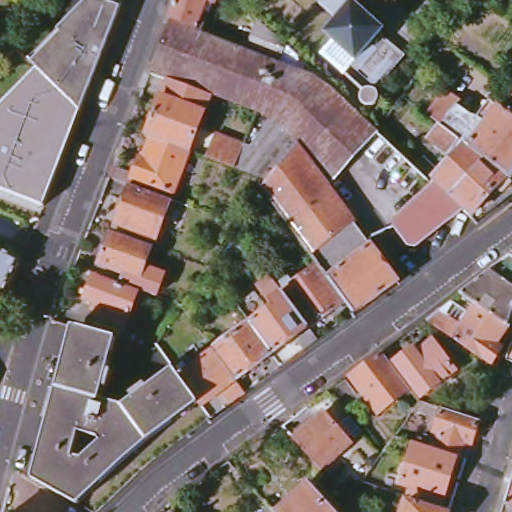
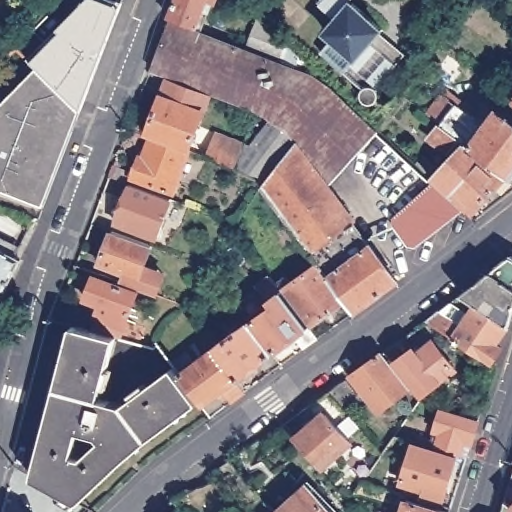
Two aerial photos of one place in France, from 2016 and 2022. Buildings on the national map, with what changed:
unchanged [(90,0),(111,0),(125,5),(87,109),(45,70),(44,69),(35,61),(33,59),(90,0)]
unchanged [(175,0),(207,0),(197,26),(169,16),(175,0)]
unchanged [(366,103),(364,103),(362,101),(361,99),(360,98),(359,96),(359,94),(359,91),(361,89),(321,54),(333,40),(326,34),(338,20),(318,1),(319,0),(351,0),(386,29),(376,41),(396,60),(375,85),(376,86),(378,88),(379,89),(379,91),(380,92),(379,95),(379,98),(378,99),(377,101),(375,102),(374,103),(372,103),(369,104),(368,104),(366,103)]
unchanged [(218,134),(246,144),(253,146),(271,121),(264,111),(150,69),(169,19),(319,74),(379,128),(435,179),(467,209),(418,245),(409,244),(395,224),(398,218),(415,204),(402,198),(354,155),(329,184),(369,238),(324,270),(319,264),(262,187),(268,178),(236,167),(209,157),(218,134)]
unchanged [(316,70),(274,55),(280,38),(316,70)]
unchanged [(0,188),(0,103),(39,65),(44,69),(45,70),(82,104),(44,204),(0,188)]
unchanged [(148,135),(163,95),(169,79),(212,94),(205,110),(190,150),(153,137),(148,135)]
unchanged [(423,109),(431,97),(439,103),(449,88),(464,99),(462,104),(474,114),(481,115),(492,99),(512,114),(512,176),(442,123),(423,109)]
unchanged [(435,179),(462,148),(455,142),(448,150),(431,137),(442,123),(512,176),(512,178),(502,189),(497,187),(472,214),(467,209),(435,179)]
unchanged [(110,177),(114,166),(135,174),(140,158),(145,159),(153,137),(190,150),(174,193),(133,178),(131,184),(110,177)]
unchanged [(173,199),(158,238),(117,223),(131,184),(173,199)]
unchanged [(146,268),(165,274),(157,295),(139,289),(124,284),(128,274),(101,265),(114,232),(154,246),(146,268)]
unchanged [(18,259),(0,291),(0,236),(20,245),(18,259)]
unchanged [(329,276),(374,243),(399,280),(354,312),(346,299),(329,276)]
unchanged [(512,263),(512,311),(506,329),(456,299),(508,260),(512,263)]
unchanged [(284,290),(319,264),(324,270),(329,276),(346,299),(311,324),(284,290)]
unchanged [(210,266),(211,265),(218,274),(209,282),(203,275),(210,266)]
unchanged [(253,322),(273,307),(258,286),(273,275),(284,290),(311,324),(319,337),(304,348),(296,336),(274,352),(253,322)]
unchanged [(118,337),(94,331),(103,306),(88,300),(97,278),(139,294),(123,338),(118,337)]
unchanged [(423,324),(436,314),(456,299),(506,329),(492,349),(498,354),(487,369),(449,343),(423,324)]
unchanged [(216,349),(253,322),(274,352),(238,379),(216,349)]
unchanged [(59,493),(35,480),(77,327),(94,331),(118,337),(101,398),(120,407),(173,363),(181,374),(198,398),(141,443),(118,464),(78,503),(59,493)]
unchanged [(404,337),(416,353),(433,340),(455,370),(422,396),(388,349),(404,337)]
unchanged [(181,374),(216,349),(238,379),(223,389),(232,401),(211,416),(198,398),(181,374)]
unchanged [(384,352),(411,389),(397,399),(406,412),(403,416),(393,402),(378,412),(351,375),(384,352)]
unchanged [(462,456),(433,447),(437,432),(435,431),(443,409),(480,421),(474,442),(468,458),(462,456)]
unchanged [(295,438),(326,412),(352,443),(321,469),(295,438)]
unchanged [(409,493),(412,487),(403,483),(416,446),(458,459),(444,503),(409,493)]
unchanged [(230,461),(247,479),(236,488),(219,468),(230,461)]
unchanged [(309,487),(332,512),(282,512),(309,487)]
unchanged [(512,488),(512,512),(508,512),(505,509),(512,488)]
unchanged [(409,499),(448,512),(404,512),(409,499)]
unchanged [(168,504),(174,512),(159,512),(168,504)]
unchanged [(505,509),(508,512),(504,512),(505,509)]

